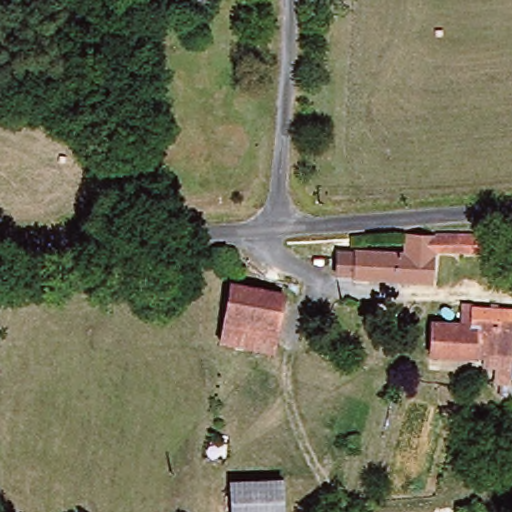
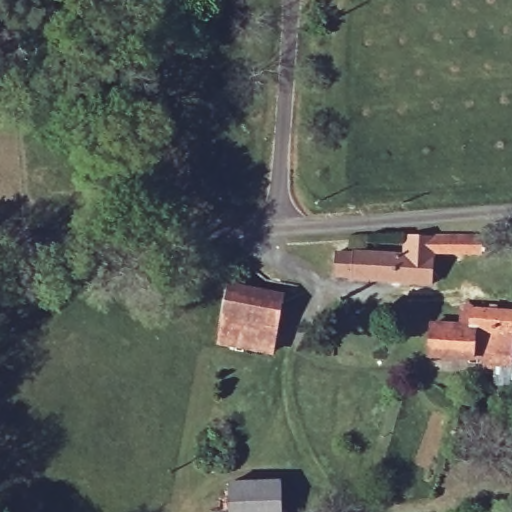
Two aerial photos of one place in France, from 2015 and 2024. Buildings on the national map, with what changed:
unchanged [(489,237),(487,258),(468,256),(429,254),(427,280),(349,275),(348,249),(363,248),(362,240),(408,237),(469,236),(489,237)]
unchanged [(284,296),(278,351),(267,351),(221,344),(228,290),(274,294),(284,296)]
unchanged [(512,316),(512,400),(497,401),(495,383),(488,383),(488,368),(476,367),(482,323),(482,314),(512,316)]
unchanged [(452,319),(482,323),(476,367),(421,358),(424,332),(449,336),(452,319)]
unchanged [(230,512),(228,489),(279,481),(284,512),(230,512)]

